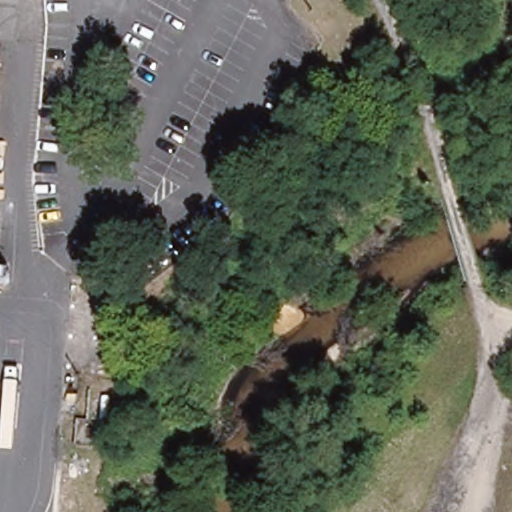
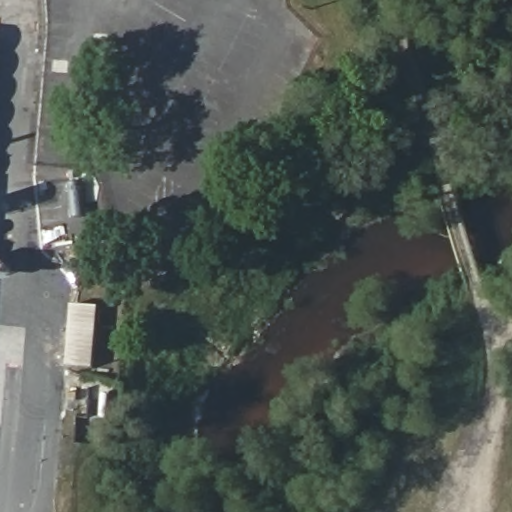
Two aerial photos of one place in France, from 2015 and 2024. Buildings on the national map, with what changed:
new [(94,368),(68,367),(73,306),(99,307),(94,368)]

